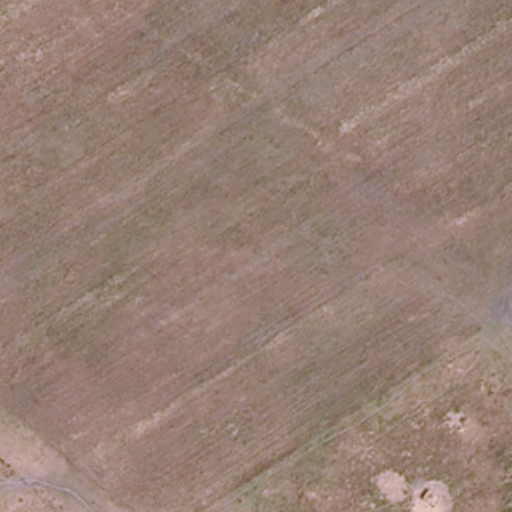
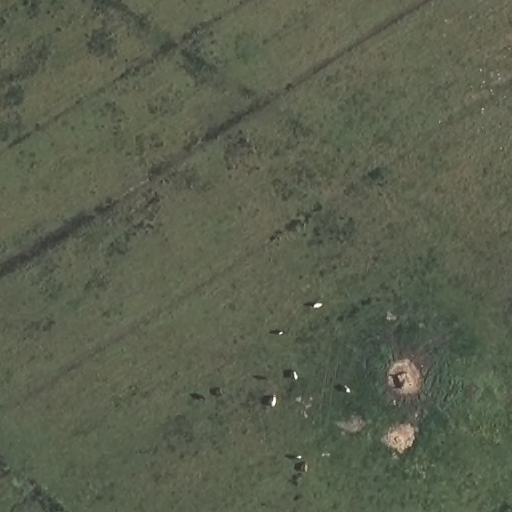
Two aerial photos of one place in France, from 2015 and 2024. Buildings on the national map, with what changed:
[]

